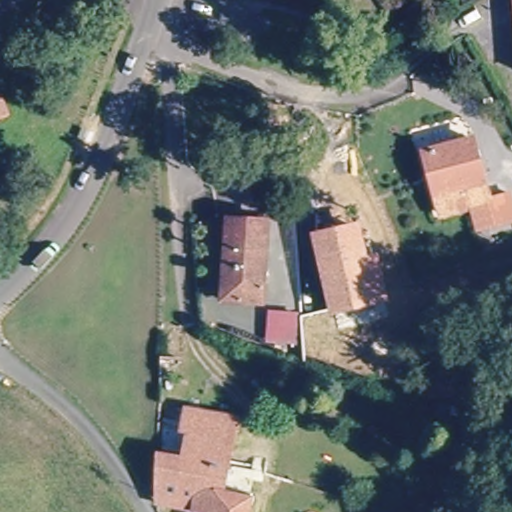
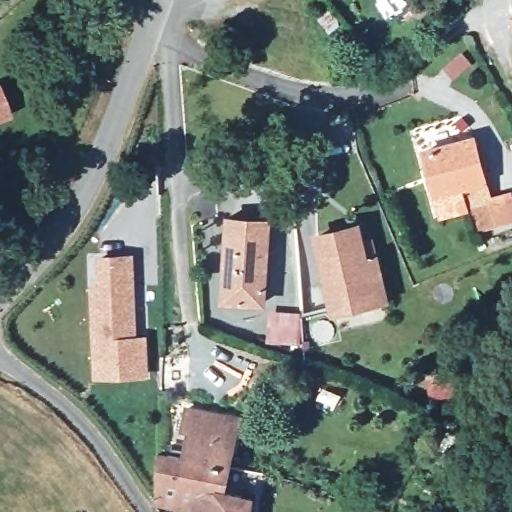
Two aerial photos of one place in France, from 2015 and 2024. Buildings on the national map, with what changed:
unchanged [(4,114),(0,116),(0,105),(4,114)]
unchanged [(441,210),(423,154),(467,141),(484,197),(510,190),(512,196),(512,217),(477,227),(470,202),(441,210)]
unchanged [(269,311),(221,301),(221,220),(277,225),(269,311)]
unchanged [(367,255),(378,253),(389,302),(331,316),(312,232),(360,221),(367,255)]
new [(97,357),(95,285),(104,285),(102,255),(132,254),(135,335),(145,335),(146,370),(117,372),(97,372),(97,357)]
unchanged [(184,425),(182,424),(184,407),(232,413),(227,486),(246,489),(245,512),(193,512),(194,507),(156,497),(154,447),(182,450),(184,425)]

